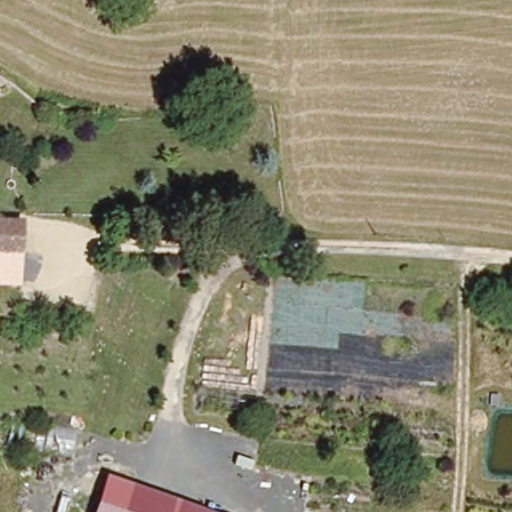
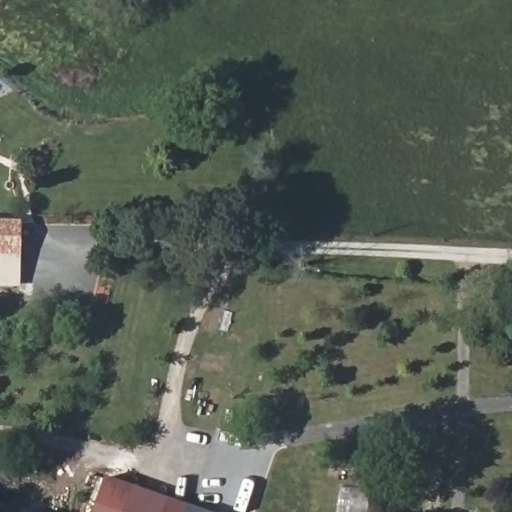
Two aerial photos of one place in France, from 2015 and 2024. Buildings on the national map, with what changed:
unchanged [(0,265),(0,221),(20,221),(18,266),(0,265)]
unchanged [(109,478),(206,512),(97,512),(109,478)]

